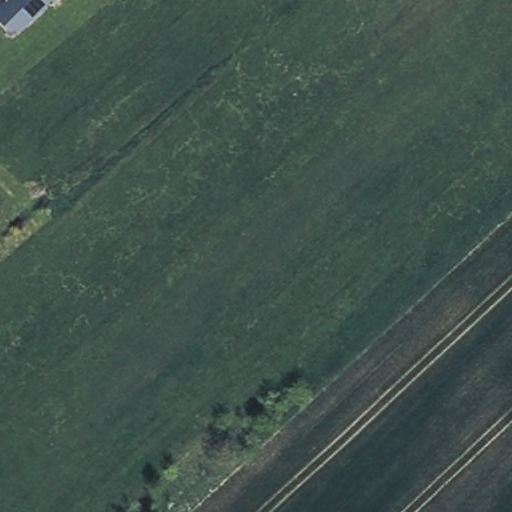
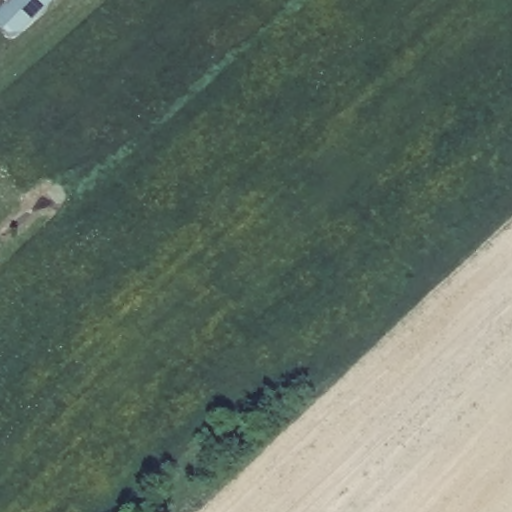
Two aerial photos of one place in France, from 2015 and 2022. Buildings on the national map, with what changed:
unchanged [(7,0),(53,0),(17,39),(0,19),(0,13),(10,3),(7,0)]

